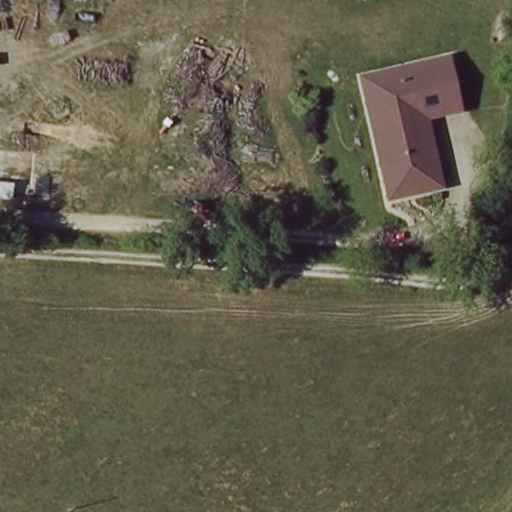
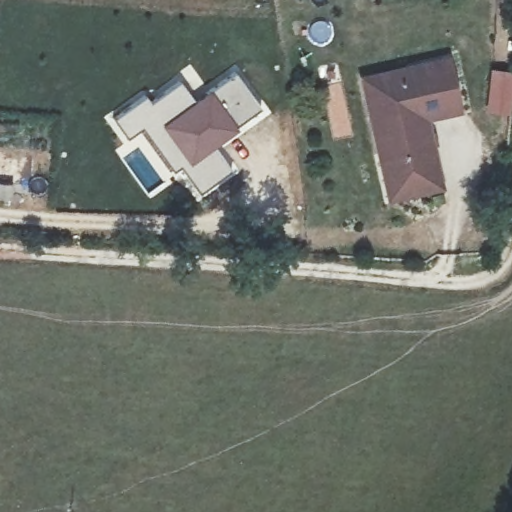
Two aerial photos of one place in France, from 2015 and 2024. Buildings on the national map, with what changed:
unchanged [(462,115),(431,119),(445,190),(388,203),(362,75),(447,55),(462,115)]
new [(146,95),(150,101),(182,81),(194,98),(235,67),(264,105),(218,144),(234,169),(200,195),(178,167),(172,172),(141,128),(127,138),(113,118),(146,95)]
new [(341,81),(347,116),(334,118),(335,124),(332,125),(321,86),(341,81)]

